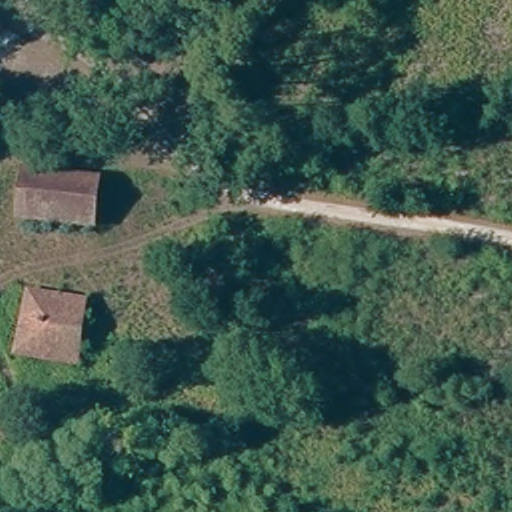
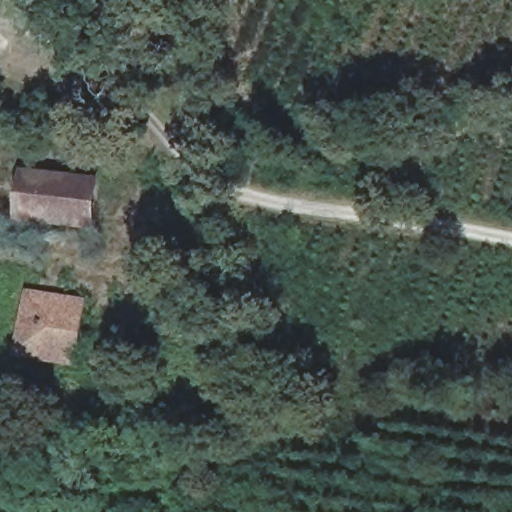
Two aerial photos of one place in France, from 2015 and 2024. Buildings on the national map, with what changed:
unchanged [(85,216),(36,212),(38,180),(87,184),(85,216)]
unchanged [(18,354),(22,296),(86,298),(77,359),(18,354)]

